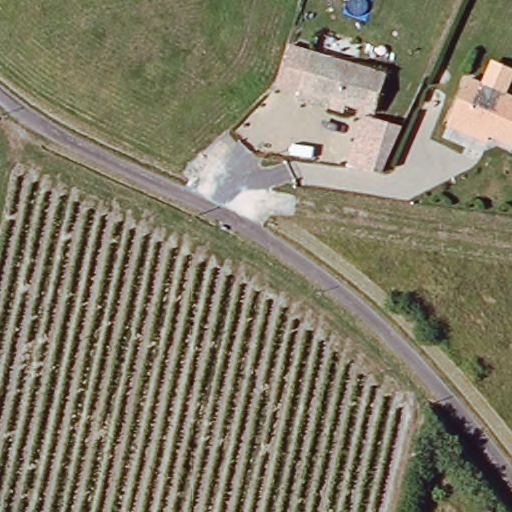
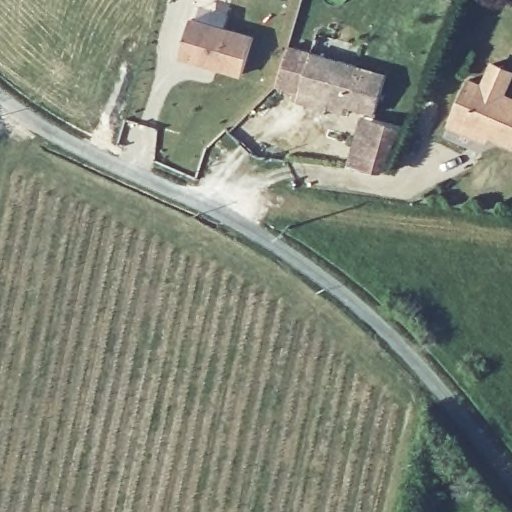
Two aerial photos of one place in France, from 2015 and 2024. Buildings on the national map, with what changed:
new [(181,57),(192,18),(254,35),(242,77),(181,57)]
unchanged [(375,112),(298,90),(279,84),(290,46),(310,51),(386,73),(375,112)]
unchanged [(493,60),(512,68),(512,84),(507,95),(482,84),(493,60)]
unchanged [(463,130),(448,122),(468,77),(512,97),(512,144),(490,135),(487,140),(463,130)]
new [(347,104),(343,117),(298,104),(302,91),(347,104)]
unchanged [(403,127),(381,174),(347,164),(362,116),(403,127)]

